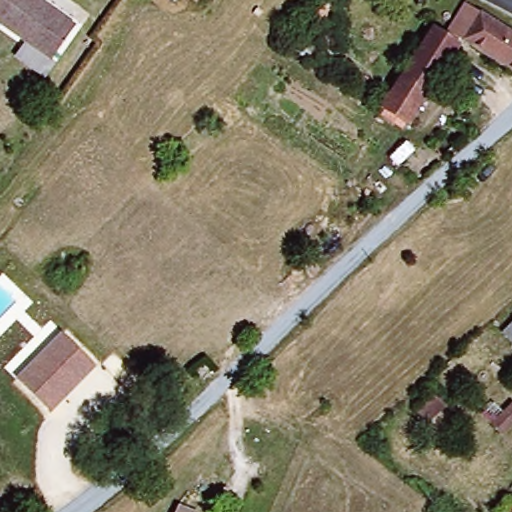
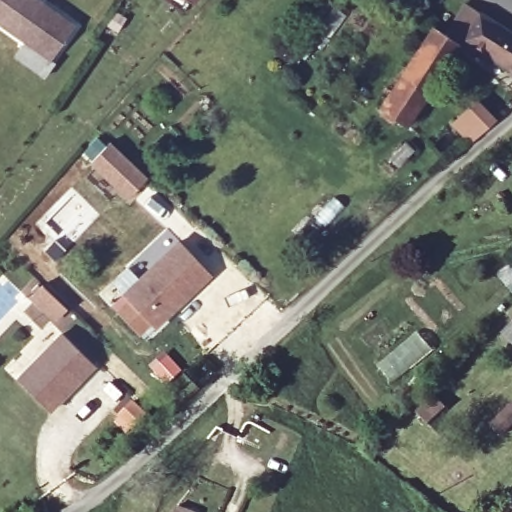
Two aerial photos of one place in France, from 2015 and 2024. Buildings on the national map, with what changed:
unchanged [(0,25),(0,0),(30,0),(68,31),(43,58),(0,25)]
unchanged [(189,0),(186,3),(182,0),(189,0)]
unchanged [(512,39),(512,72),(448,33),(462,8),(512,39)]
unchanged [(407,125),(383,110),(399,80),(429,29),(454,44),(407,125)]
new [(148,178),(128,199),(88,164),(109,141),(148,178)]
new [(211,274),(158,329),(151,323),(138,336),(115,314),(128,301),(122,294),(178,239),(211,274)]
new [(40,287),(65,310),(55,321),(30,297),(40,287)]
unchanged [(506,326),(512,321),(512,332),(506,326)]
unchanged [(60,332),(96,364),(53,412),(16,379),(60,332)]
new [(117,417),(129,401),(145,413),(132,429),(131,428),(125,434),(113,425),(118,419),(117,417)]
unchanged [(472,425),(494,405),(507,416),(484,438),(472,425)]
unchanged [(201,512),(178,512),(181,504),(201,512)]

